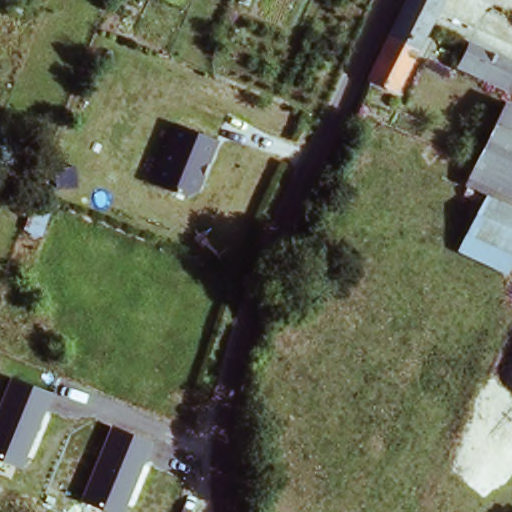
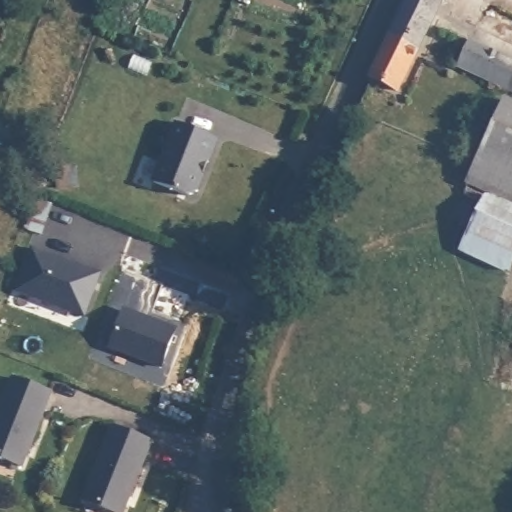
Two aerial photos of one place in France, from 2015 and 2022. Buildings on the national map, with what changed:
unchanged [(406,0),(441,0),(397,87),(372,75),(370,73),(406,0)]
unchanged [(457,68),(469,43),(512,63),(512,93),(457,68)]
unchanged [(469,184),(508,102),(512,103),(512,204),(469,184)]
unchanged [(217,141),(195,200),(152,185),(173,126),(217,141)]
unchanged [(474,234),(487,207),(490,200),(512,209),(512,252),(474,234)]
new [(33,249),(60,258),(59,260),(82,268),(83,267),(102,274),(86,316),(68,310),(67,305),(50,298),(49,302),(17,291),(33,249)]
new [(112,347),(125,311),(145,318),(145,317),(177,328),(163,366),(112,347)]
unchanged [(52,393),(23,468),(0,458),(0,403),(10,377),(52,393)]
unchanged [(152,443),(123,512),(111,512),(82,500),(111,427),(152,443)]

